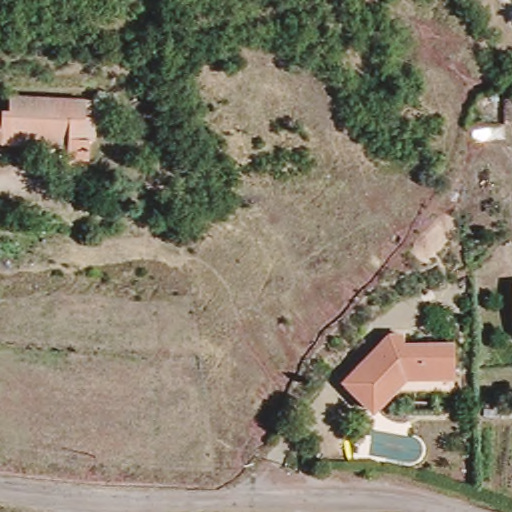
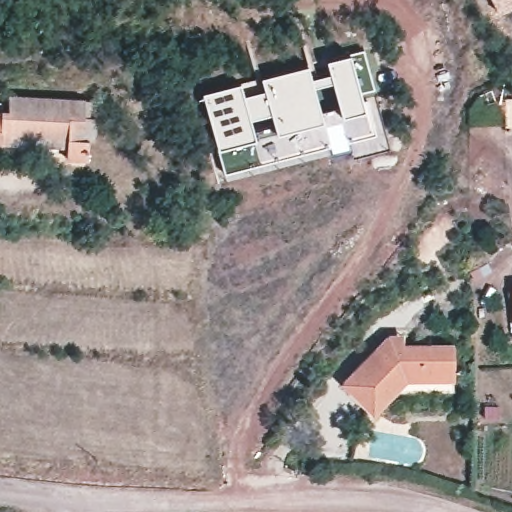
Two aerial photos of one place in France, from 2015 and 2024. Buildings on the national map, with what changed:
new [(215,146),(217,144),(202,92),(238,82),(242,94),(263,88),(260,77),(306,64),(310,76),(328,70),(325,59),(347,54),(363,49),(373,87),(357,89),(362,108),(373,134),(346,140),(348,148),(331,153),(329,145),(223,172),(215,146)]
unchanged [(512,123),(500,124),(499,93),(512,93),(512,123)]
unchanged [(3,144),(0,144),(0,109),(3,109),(4,94),(80,99),(79,113),(89,114),(88,139),(83,139),(82,159),(63,159),(63,139),(3,135),(3,144)]
unchanged [(389,333),(403,333),(404,342),(455,340),(457,388),(396,391),(377,413),(345,383),(380,344),(389,333)]

